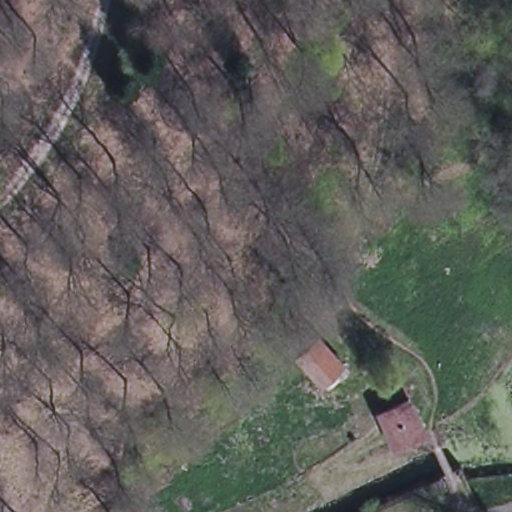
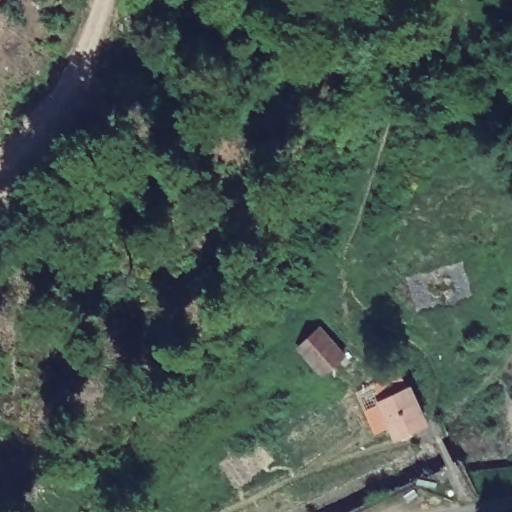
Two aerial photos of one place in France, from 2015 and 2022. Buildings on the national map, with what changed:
unchanged [(318,327),(345,353),(323,374),(297,346),(318,327)]
unchanged [(411,386),(430,422),(415,428),(417,432),(408,436),(406,432),(402,434),(385,397),(411,386)]

